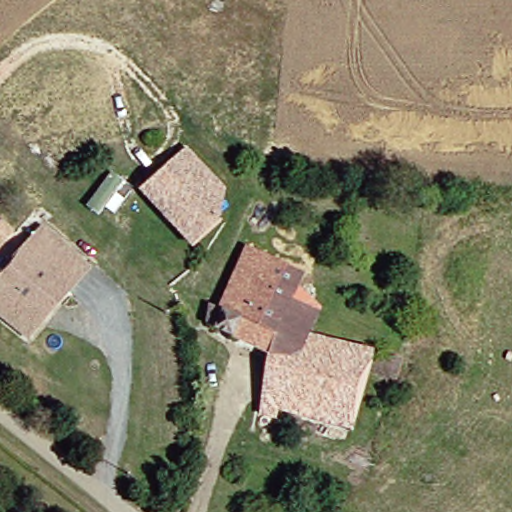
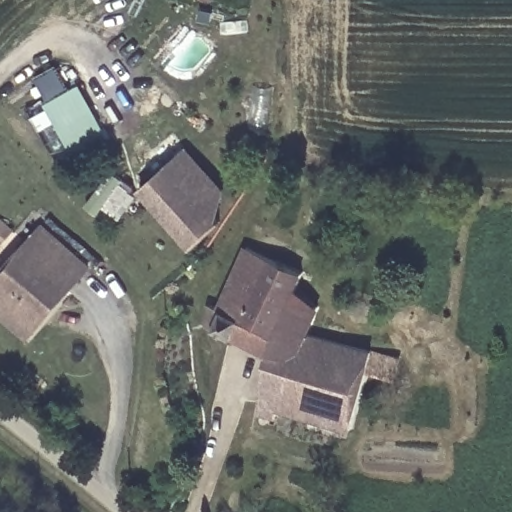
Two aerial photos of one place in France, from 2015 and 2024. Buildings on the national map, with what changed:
new [(80,84),(107,135),(72,153),(45,102),(50,100),(37,75),(57,65),(71,89),(80,84)]
unchanged [(164,162),(179,147),(217,184),(213,213),(164,162)]
unchanged [(217,219),(190,242),(134,185),(162,160),(164,162),(213,213),(217,219)]
unchanged [(21,345),(0,326),(0,274),(33,234),(78,274),(21,345)]
unchanged [(263,348),(211,325),(242,246),(264,256),(267,247),(286,255),(283,264),(297,270),(282,303),(308,315),(302,331),(273,322),(263,348)]
unchanged [(274,404),(271,413),(257,410),(263,348),(273,322),(302,331),(274,404)]
unchanged [(364,351),(344,425),(274,404),(302,331),(364,351)]

